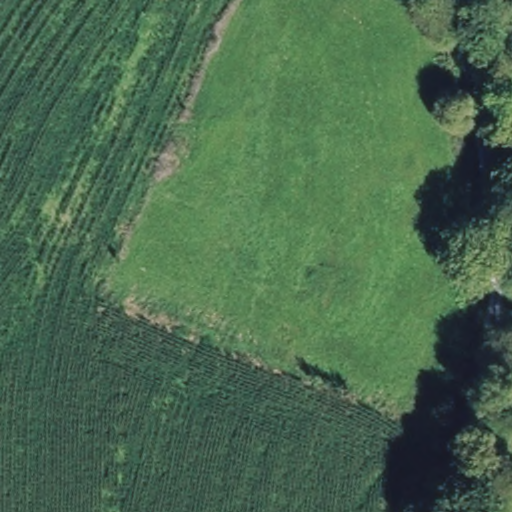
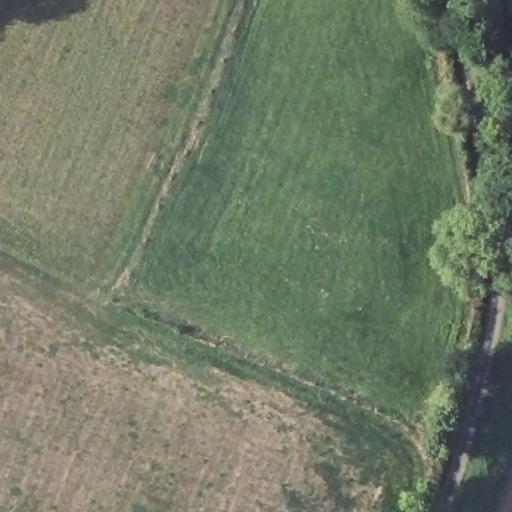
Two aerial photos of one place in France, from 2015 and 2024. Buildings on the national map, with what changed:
[]

